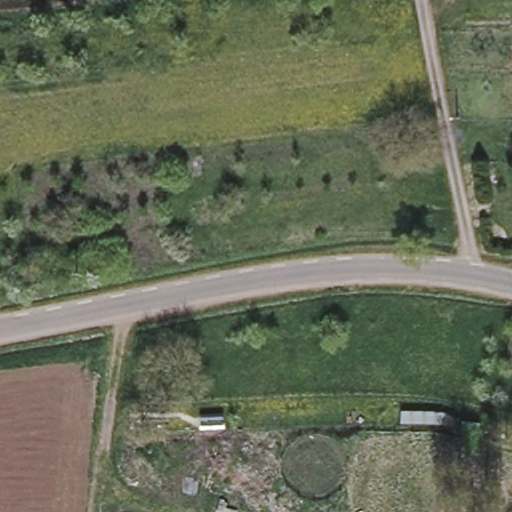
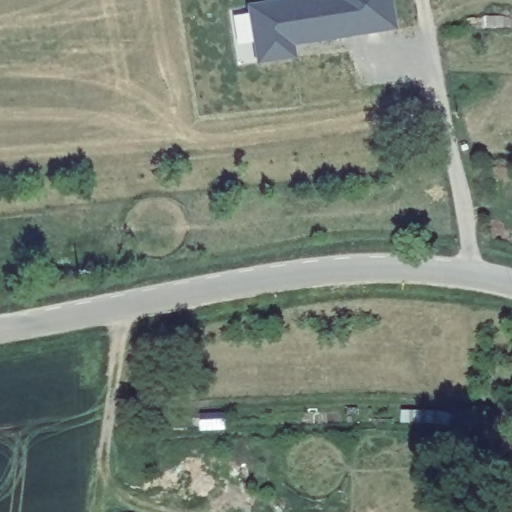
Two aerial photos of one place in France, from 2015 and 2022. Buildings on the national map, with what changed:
new [(394,29),(291,45),(293,56),(275,59),(275,62),(237,67),(230,10),(250,7),(297,0),(389,0),(394,29)]

